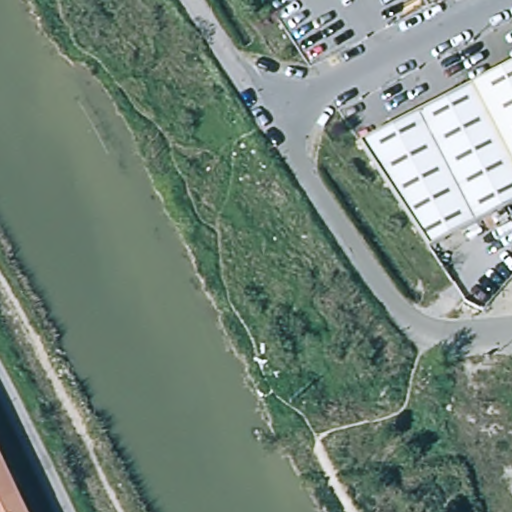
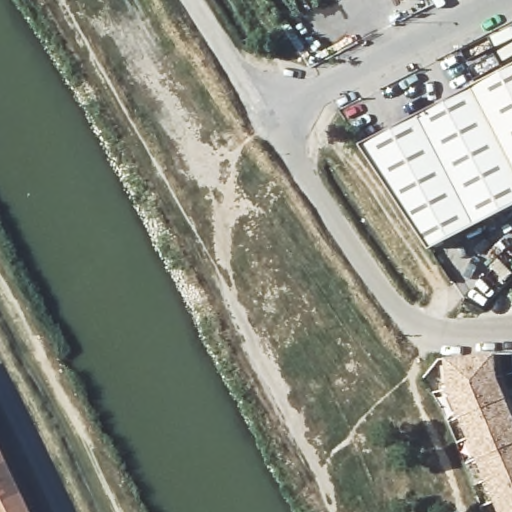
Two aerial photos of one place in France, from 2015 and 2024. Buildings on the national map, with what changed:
unchanged [(467,87),(512,63),(512,174),(467,87)]
unchanged [(467,87),(512,174),(512,204),(425,250),(355,145),(467,87)]
new [(512,414),(512,512),(492,512),(454,382),(452,358),(500,355),(502,377),(512,414)]
unchanged [(0,512),(0,458),(26,512),(0,512)]

